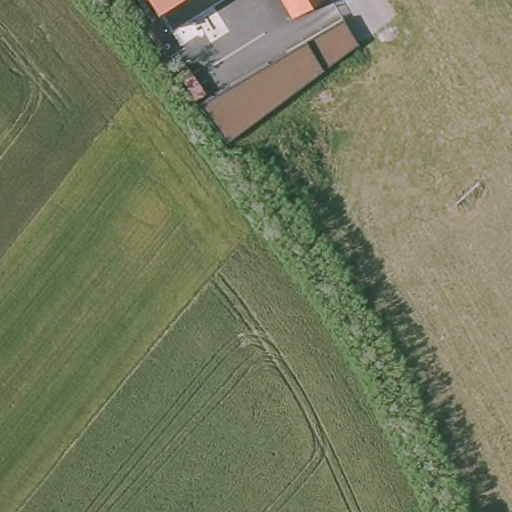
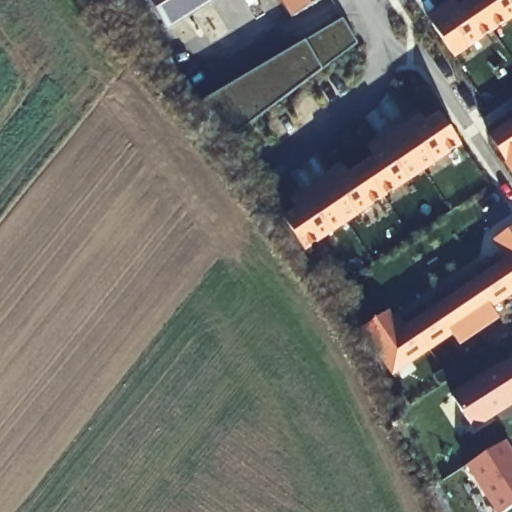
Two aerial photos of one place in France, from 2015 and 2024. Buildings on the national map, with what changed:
unchanged [(150,0),(217,0),(169,29),(150,0)]
unchanged [(280,0),(319,0),(290,16),(280,0)]
new [(427,16),(451,0),(454,0),(458,6),(467,0),(512,0),(512,15),(452,55),(427,16)]
unchanged [(357,45),(322,69),(224,142),(199,104),(306,40),(342,18),(357,45)]
new [(369,149),(420,114),(425,121),(439,112),(460,143),(434,161),(435,161),(304,249),(282,218),(297,208),(292,201),(344,166),(349,173),(374,156),(369,149)]
new [(512,172),(487,136),(512,120),(512,172)]
new [(387,311),(400,331),(507,260),(494,240),(512,228),(512,293),(490,308),(497,319),(457,345),(450,334),(391,373),(361,328),(387,311)]
new [(512,360),(512,403),(474,428),(453,398),(512,359),(512,360)]
new [(512,459),(512,460),(512,509),(507,512),(495,512),(467,466),(505,442),(512,454),(512,459)]

